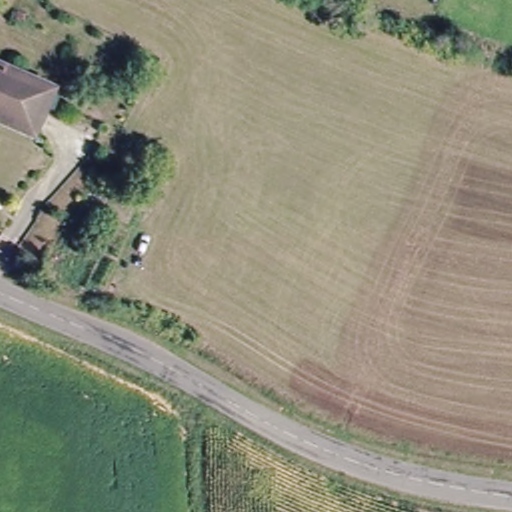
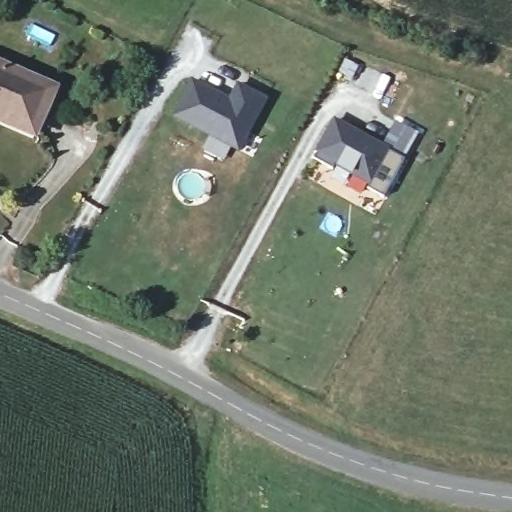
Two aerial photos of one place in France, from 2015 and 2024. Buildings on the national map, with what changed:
unchanged [(31,145),(0,130),(0,65),(55,95),(31,145)]
new [(240,152),(173,119),(191,82),(230,103),(236,87),(263,100),(255,116),(240,152)]
new [(368,183),(335,164),(331,170),(312,160),(316,152),(335,119),(387,150),(405,159),(383,199),(366,190),(368,183)]

